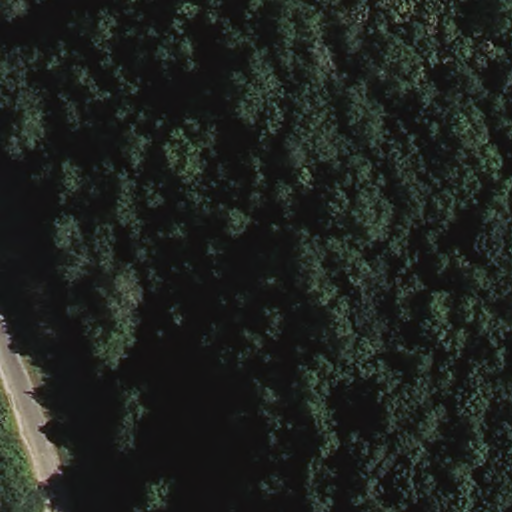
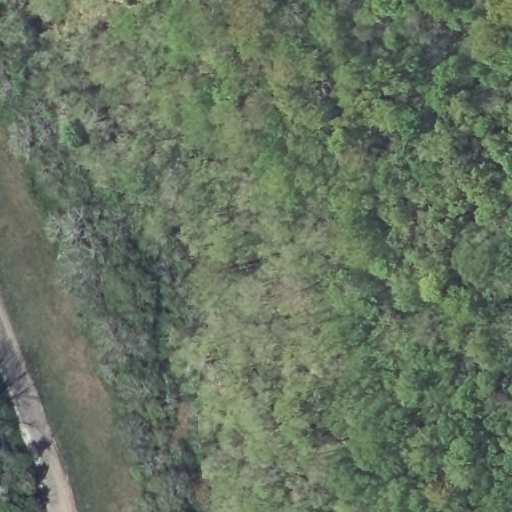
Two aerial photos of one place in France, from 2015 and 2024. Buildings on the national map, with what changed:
[]

